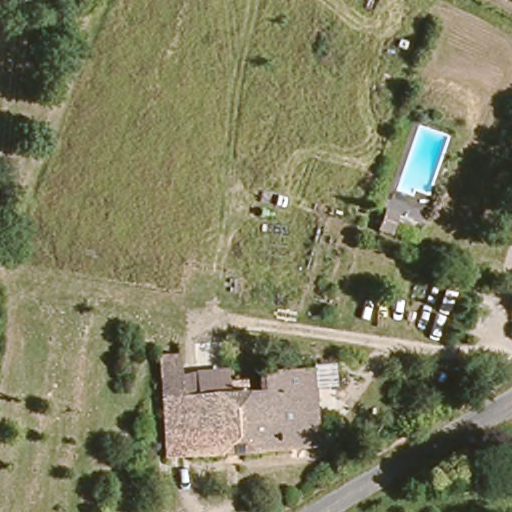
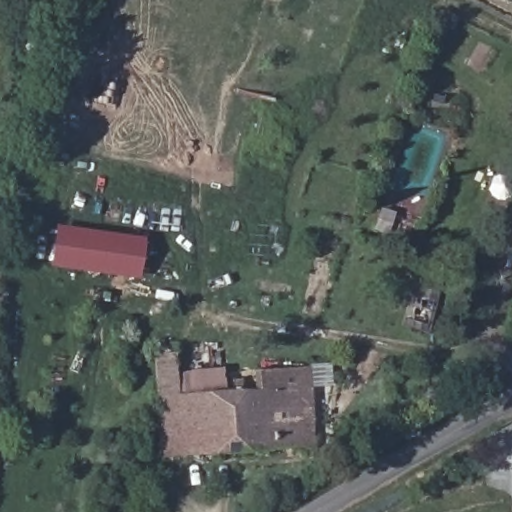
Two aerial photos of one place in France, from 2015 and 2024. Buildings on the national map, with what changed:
unchanged [(397,204),(390,223),(379,219),(386,200),(397,204)]
new [(144,240),(138,281),(51,268),(56,227),(144,240)]
unchanged [(171,350),(172,372),(217,368),(218,378),(234,377),(235,388),(251,386),(250,373),(303,369),(303,367),(327,365),(329,390),(305,392),(308,424),(320,424),(321,441),(241,448),(241,449),(159,456),(153,351),(171,350)]

